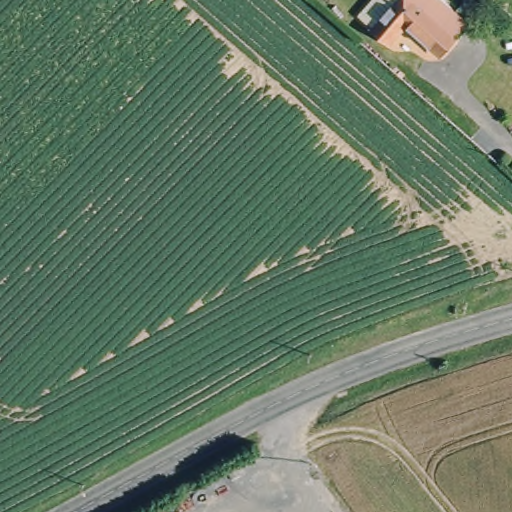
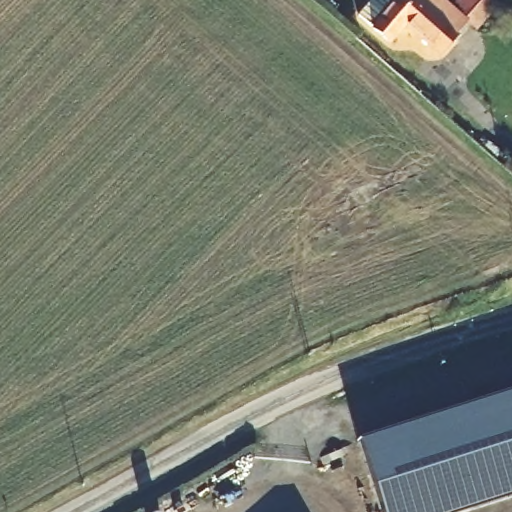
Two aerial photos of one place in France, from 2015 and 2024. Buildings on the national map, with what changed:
unchanged [(435,51),(400,24),(385,40),(357,17),(371,0),(409,0),(448,35),(435,51)]
new [(462,512),(382,512),(358,439),(512,391),(512,496),(462,512)]

